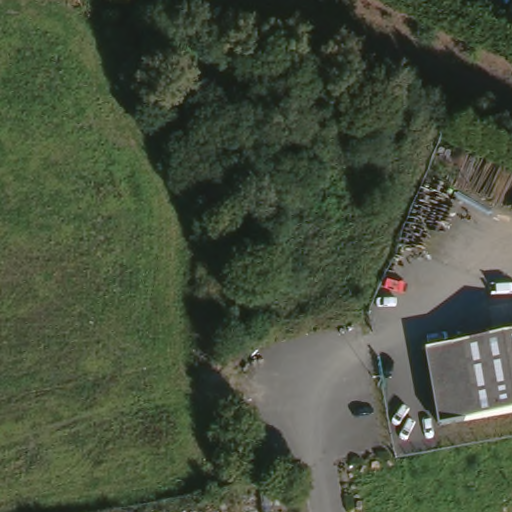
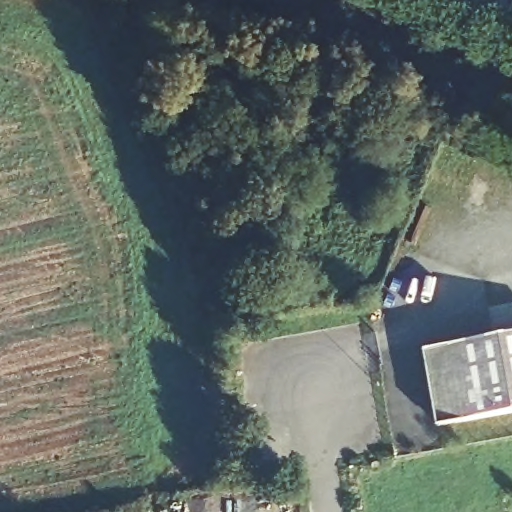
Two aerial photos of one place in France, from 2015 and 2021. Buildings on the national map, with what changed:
unchanged [(512,337),(512,415),(443,428),(432,350),(512,337)]

